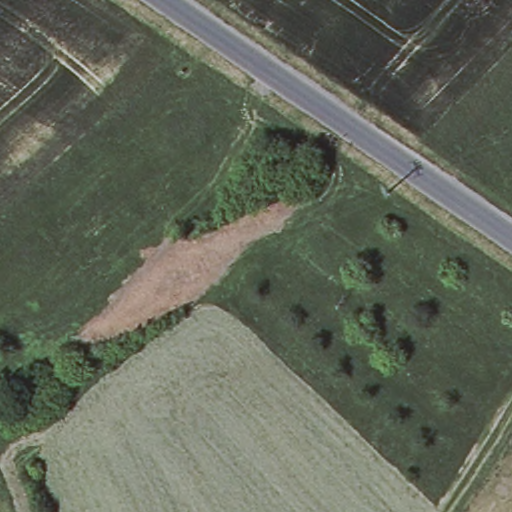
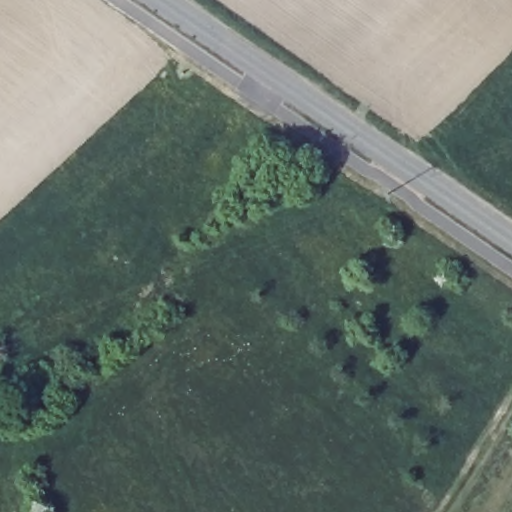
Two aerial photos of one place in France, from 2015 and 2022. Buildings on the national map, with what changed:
[]

